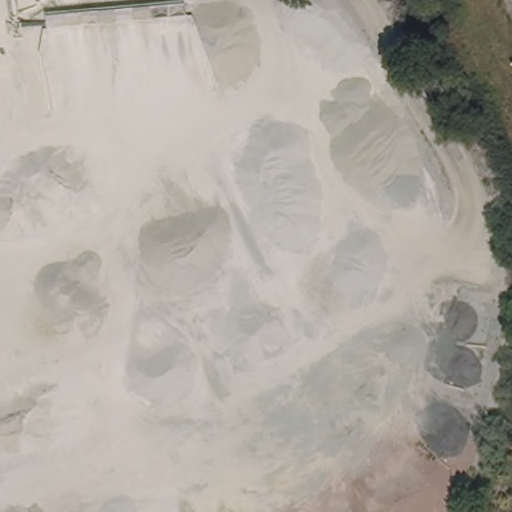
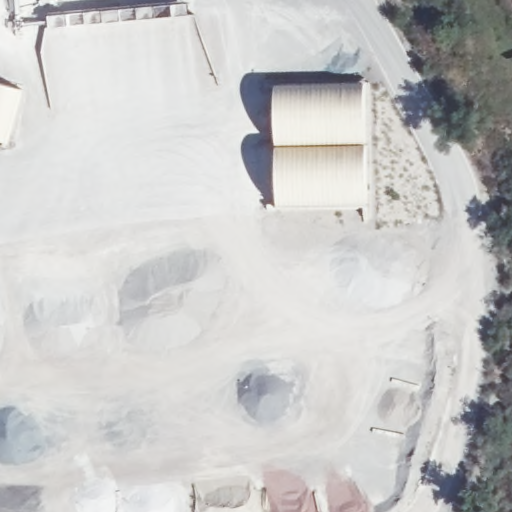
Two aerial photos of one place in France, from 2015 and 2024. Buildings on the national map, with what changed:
new [(369,70),(371,208),(274,208),(271,73),(369,70)]
new [(8,144),(0,142),(0,82),(24,89),(8,144)]

